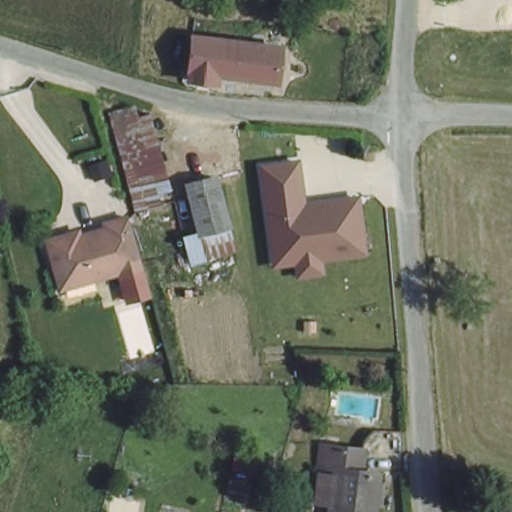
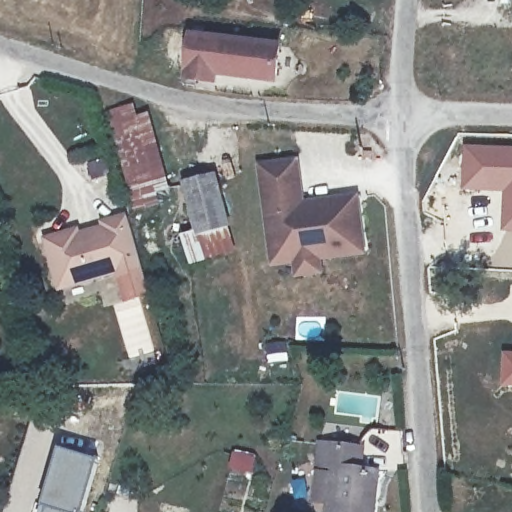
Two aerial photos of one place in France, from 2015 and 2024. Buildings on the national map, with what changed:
unchanged [(270,79),(216,75),(187,72),(189,39),(217,41),(273,46),(270,79)]
unchanged [(135,121),(148,119),(162,195),(126,201),(111,116),(131,113),(135,121)]
new [(499,232),(502,193),(460,190),(463,142),(512,144),(512,233),(499,232)]
unchanged [(383,163),(371,163),(371,150),(382,150),(383,163)]
unchanged [(366,252),(330,257),(331,270),(300,277),(295,263),(270,263),(254,157),(296,153),(301,196),(357,192),(366,252)]
unchanged [(190,268),(180,240),(195,234),(181,184),(213,172),(236,253),(190,268)]
unchanged [(100,219),(124,216),(128,241),(132,265),(48,278),(40,228),(64,224),(73,223),(73,228),(100,224),(100,219)]
new [(503,385),(502,351),(512,353),(512,386),(503,385)]
unchanged [(364,467),(374,467),(374,473),(381,483),(377,512),(333,512),(335,502),(315,499),(320,465),(323,465),(326,441),(333,442),(367,448),(364,467)]
new [(83,512),(48,512),(49,507),(44,506),(60,449),(98,461),(83,512)]

